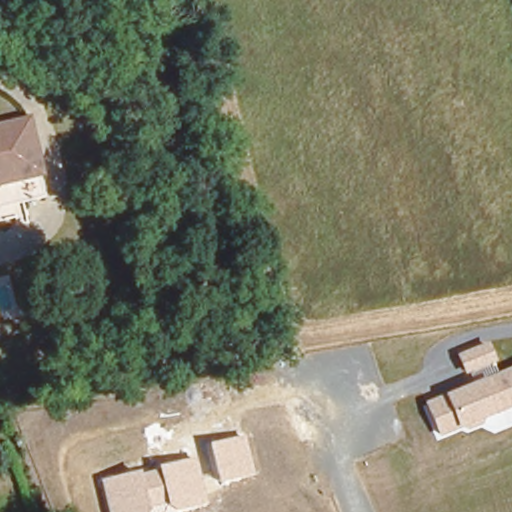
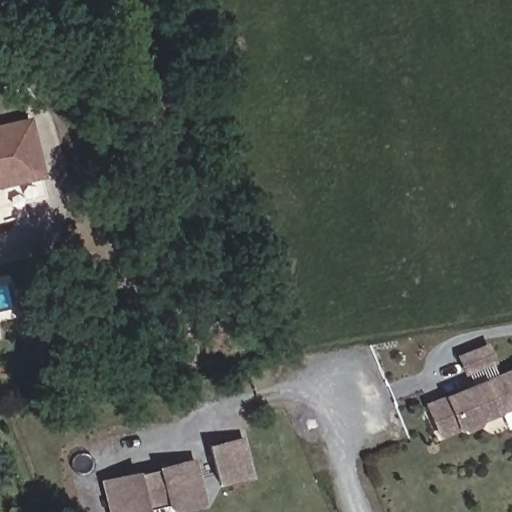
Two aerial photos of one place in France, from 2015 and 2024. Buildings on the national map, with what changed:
unchanged [(29,120),(46,192),(2,202),(4,211),(0,212),(0,128),(29,120)]
unchanged [(512,404),(480,417),(478,424),(467,430),(460,427),(438,435),(426,405),(512,369),(512,404)]
unchanged [(216,482),(207,444),(242,435),(253,474),(216,482)]
unchanged [(176,512),(165,504),(148,508),(148,512),(107,512),(100,478),(140,468),(142,472),(157,470),(156,466),(193,456),(203,506),(176,512)]

